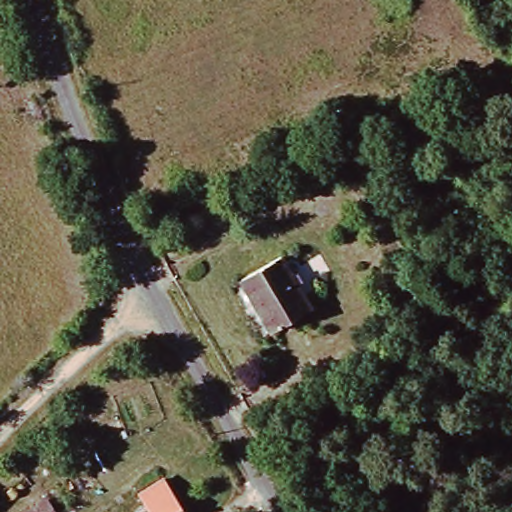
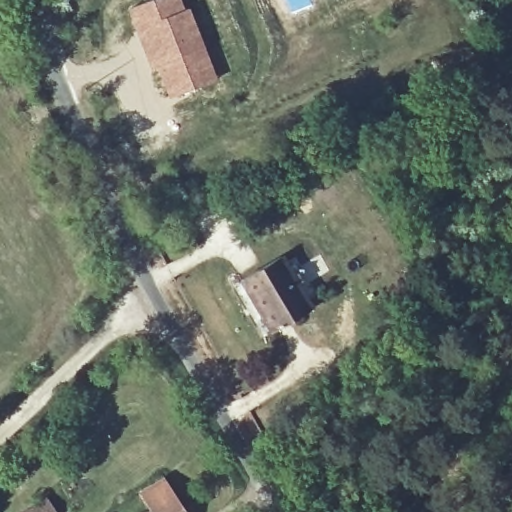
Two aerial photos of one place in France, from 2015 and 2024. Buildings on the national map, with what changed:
new [(147,0),(181,0),(185,9),(188,7),(216,80),(166,100),(140,47),(125,9),(147,0)]
unchanged [(307,306),(267,329),(237,278),(277,254),(307,306)]
unchanged [(131,495),(156,480),(176,512),(115,512),(135,500),(131,495)]
unchanged [(56,512),(29,512),(47,500),(56,512)]

